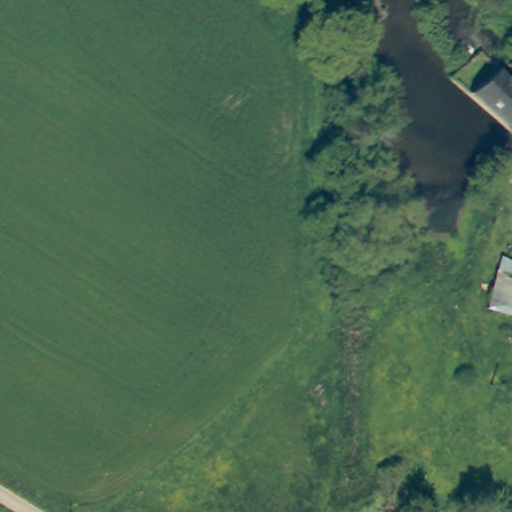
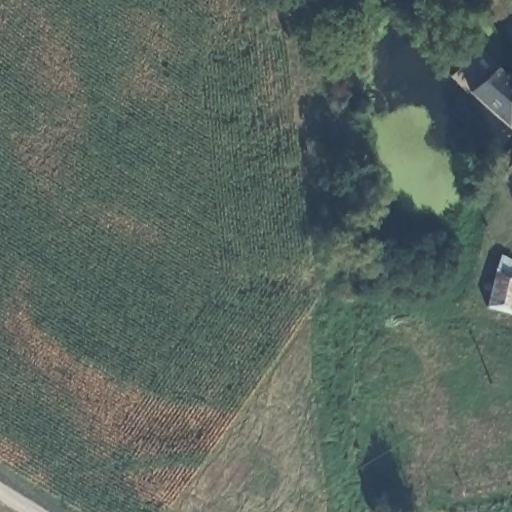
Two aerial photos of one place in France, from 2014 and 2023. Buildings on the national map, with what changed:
unchanged [(512,35),(512,44),(508,38),(512,35)]
unchanged [(480,90),(503,72),(510,80),(512,78),(512,121),(505,126),(480,90)]
unchanged [(486,302),(500,255),(512,259),(512,301),(510,308),(486,302)]

